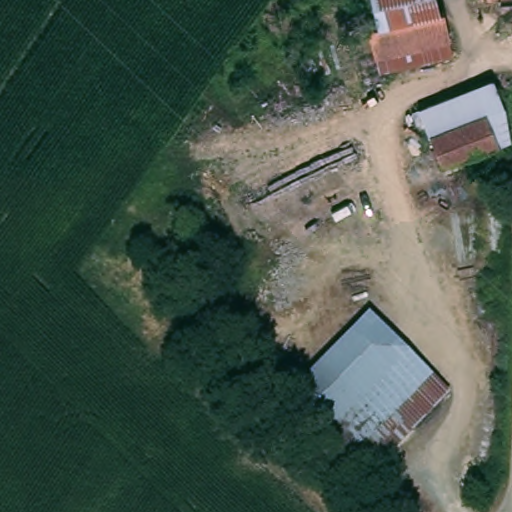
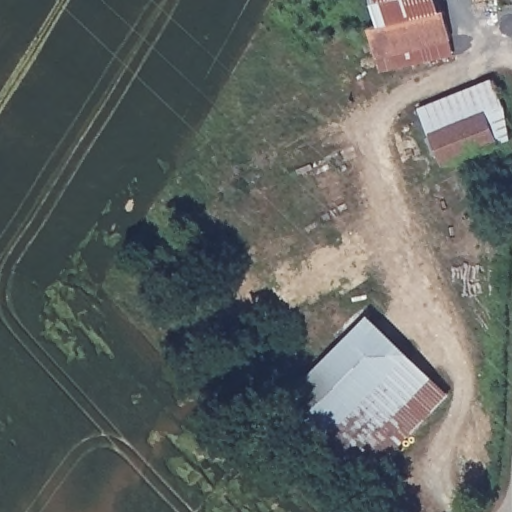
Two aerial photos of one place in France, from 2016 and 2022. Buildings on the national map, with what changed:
unchanged [(437,9),(379,20),(374,0),(435,0),(437,9)]
unchanged [(468,0),(512,0),(512,3),(468,7),(468,0)]
unchanged [(377,51),(370,22),(379,20),(437,9),(442,8),(447,35),(377,51)]
unchanged [(377,51),(447,35),(451,55),(411,63),(382,69),(377,51)]
unchanged [(506,104),(504,139),(447,161),(426,104),(495,77),(506,104)]
unchanged [(450,400),(361,486),(285,407),(373,322),(450,400)]

